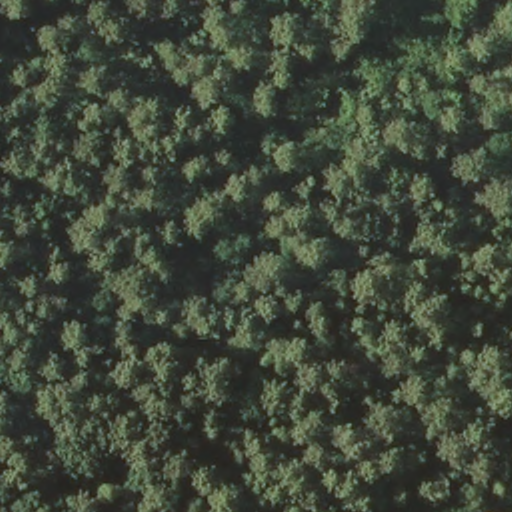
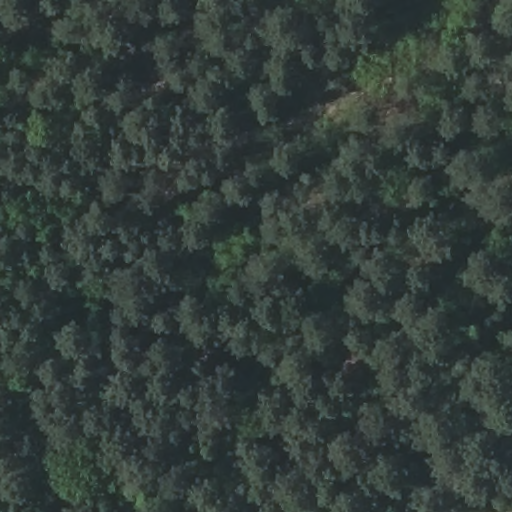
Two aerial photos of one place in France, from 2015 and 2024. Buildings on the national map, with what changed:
[]

